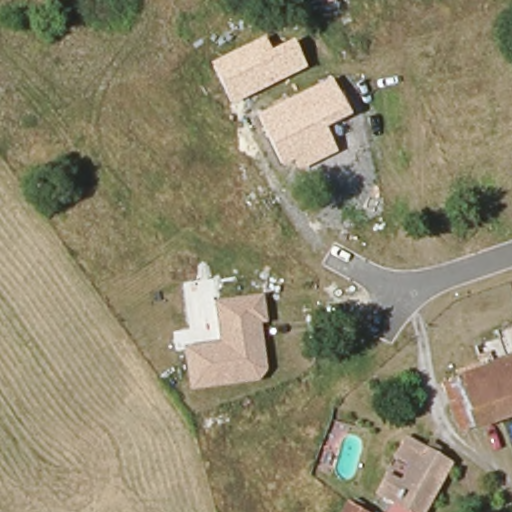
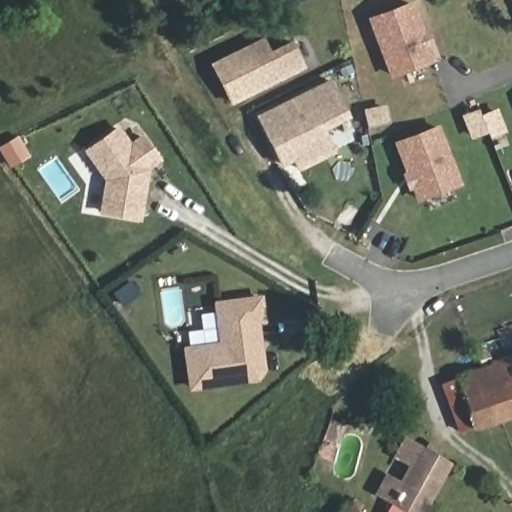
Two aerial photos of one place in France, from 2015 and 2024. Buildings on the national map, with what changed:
new [(434,61),(390,77),(367,19),(413,2),(424,32),(428,31),(434,47),(430,49),(434,61)]
unchanged [(232,105),(212,62),(264,37),(272,51),(293,40),(306,67),(232,105)]
unchanged [(325,129),(336,154),(298,171),(293,162),(280,168),(255,116),(331,78),(350,115),(325,129)]
new [(475,114),(488,109),(496,128),(482,134),(481,128),(467,134),(459,115),(473,109),(475,114)]
new [(416,202),(411,190),(408,191),(401,172),(405,172),(393,141),(438,124),(462,185),(416,202)]
new [(143,132),(162,160),(150,169),(142,222),(99,214),(104,179),(83,150),(119,125),(130,141),(143,132)]
unchanged [(267,323),(259,324),(265,370),(257,380),(189,390),(184,348),(220,342),(214,302),(263,293),(267,323)]
unchanged [(512,358),(512,411),(477,423),(460,377),(512,358)]
unchanged [(477,423),(457,431),(440,385),(460,377),(477,423)]
unchanged [(399,478),(407,464),(394,457),(406,436),(452,462),(424,512),(407,512),(387,501),(373,492),(387,470),(399,478)]
unchanged [(357,512),(340,512),(345,505),(357,512)]

